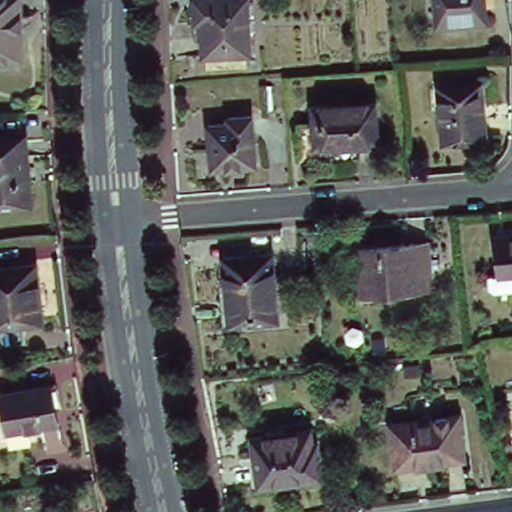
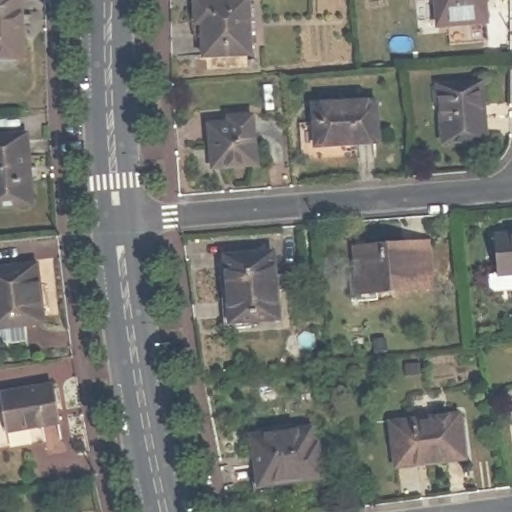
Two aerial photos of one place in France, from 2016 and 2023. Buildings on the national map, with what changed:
unchanged [(20,0),(22,56),(0,57),(0,0),(20,0)]
unchanged [(196,19),(194,0),(247,0),(250,55),(204,56),(202,18),(196,19)]
unchanged [(484,0),(486,21),(438,25),(436,0),(484,0)]
unchanged [(438,87),(478,84),(481,117),(484,117),(485,139),(443,142),(438,87)]
unchanged [(313,97),(373,93),(376,132),(316,136),(313,97)]
unchanged [(204,125),(223,124),(222,118),(247,115),(251,165),(207,169),(204,125)]
unchanged [(23,136),(29,204),(0,207),(0,138),(23,136)]
unchanged [(512,235),(512,273),(498,275),(496,236),(512,235)]
unchanged [(355,268),(351,268),(349,243),(425,238),(428,284),(357,288),(355,268)]
unchanged [(226,261),(273,257),(279,323),(231,327),(226,261)]
unchanged [(41,260),(48,318),(30,320),(32,335),(11,337),(2,327),(0,327),(0,265),(41,260)]
unchanged [(0,393),(0,391),(52,381),(59,416),(7,427),(0,393)]
unchanged [(392,425),(459,415),(464,459),(397,468),(392,425)]
unchanged [(254,432),(311,426),(312,441),(317,441),(321,473),(260,481),(254,432)]

